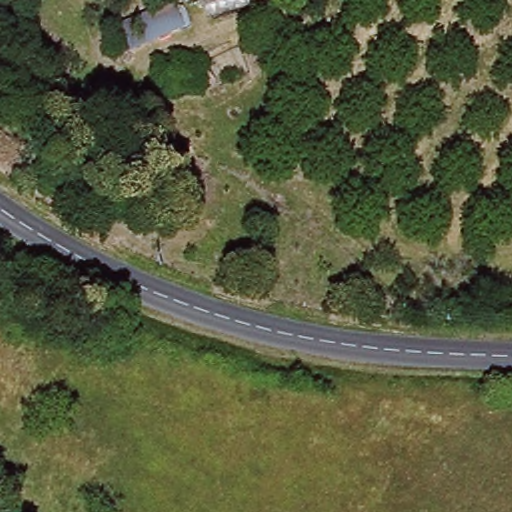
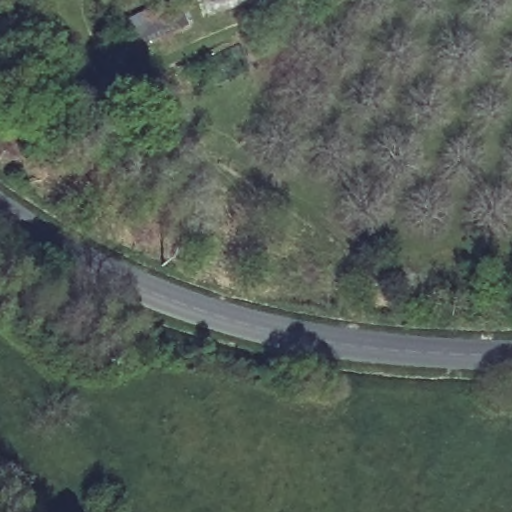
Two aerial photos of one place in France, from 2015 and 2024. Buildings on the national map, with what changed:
unchanged [(122,15),(163,0),(179,0),(187,29),(136,47),(122,15)]

